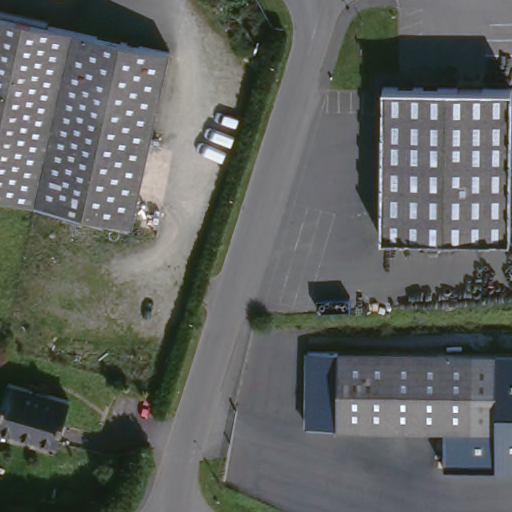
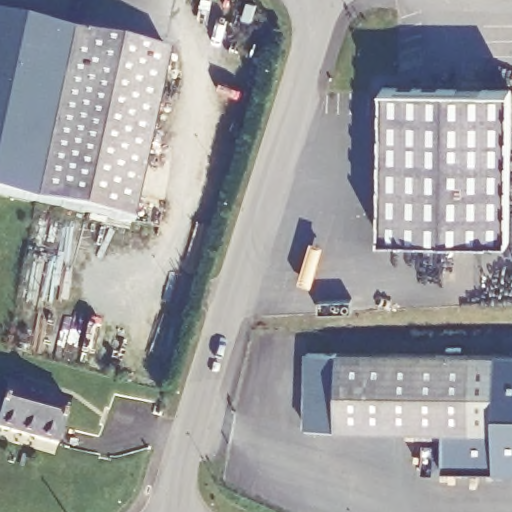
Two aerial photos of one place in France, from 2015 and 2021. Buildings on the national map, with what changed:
unchanged [(168,58),(133,229),(0,201),(0,21),(168,58)]
unchanged [(511,92),(505,242),(375,240),(379,90),(511,92)]
unchanged [(490,427),(447,427),(301,427),(300,355),(458,353),(490,353),(490,408),(490,427)]
unchanged [(490,427),(490,408),(490,353),(512,353),(512,470),(446,469),(446,427),(490,427)]
unchanged [(68,405),(56,448),(0,434),(0,403),(4,388),(68,405)]

